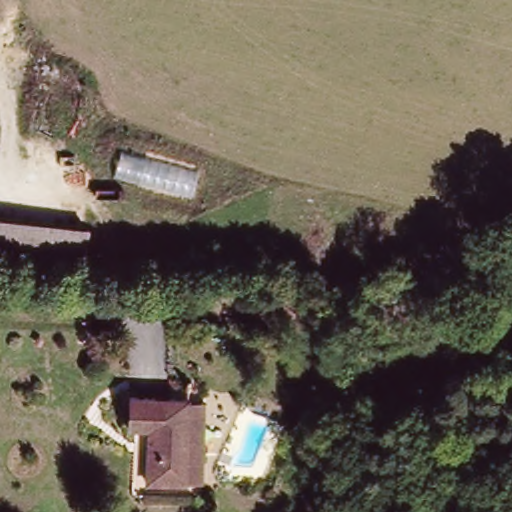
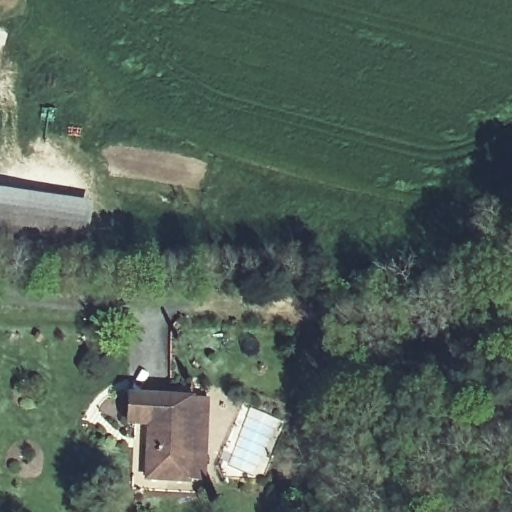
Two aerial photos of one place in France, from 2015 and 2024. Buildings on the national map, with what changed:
demolished [(197,168),(189,195),(112,177),(121,147),(197,168)]
unchanged [(76,256),(0,242),(0,195),(86,212),(76,256)]
unchanged [(131,476),(137,423),(117,420),(123,391),(182,400),(172,481),(131,476)]
unchanged [(182,400),(198,402),(186,484),(172,481),(182,400)]

